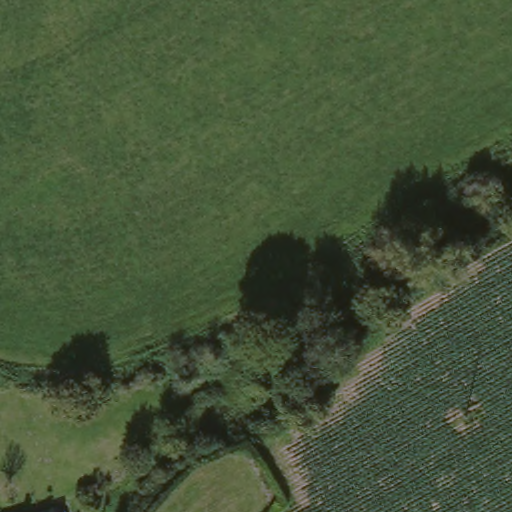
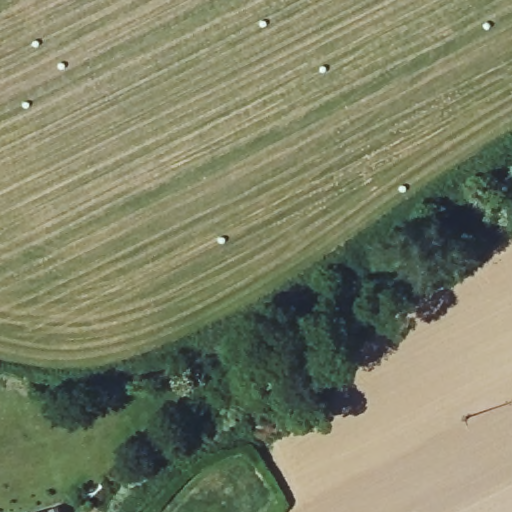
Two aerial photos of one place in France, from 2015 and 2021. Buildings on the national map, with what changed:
unchanged [(66,512),(22,512),(63,501),(66,512)]

